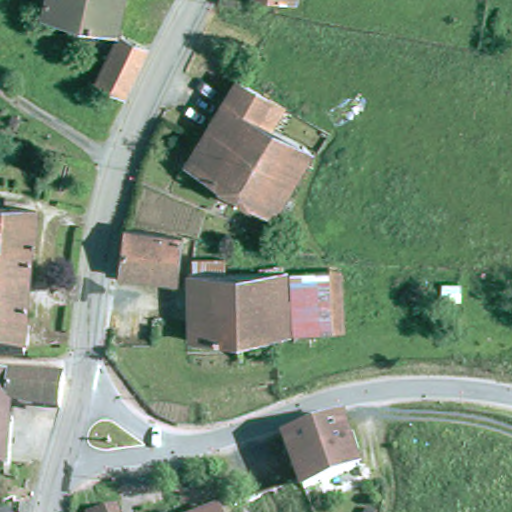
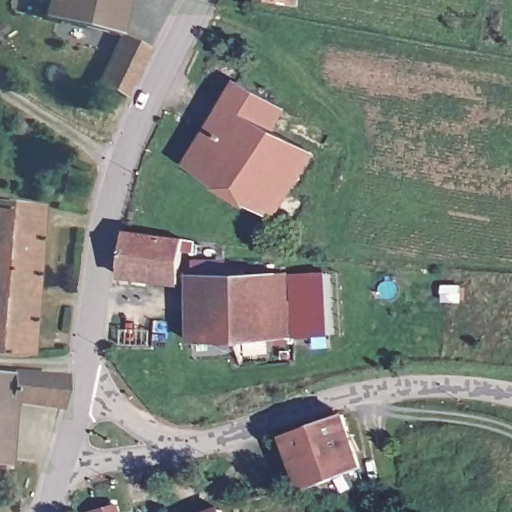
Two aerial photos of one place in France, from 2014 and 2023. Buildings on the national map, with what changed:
unchanged [(48,0),(122,0),(116,30),(45,12),(48,0)]
unchanged [(294,0),(294,2),(280,0),(294,0)]
unchanged [(98,79),(123,32),(146,44),(122,92),(98,79)]
unchanged [(181,161),(231,76),(265,97),(256,114),(254,117),(303,147),(264,211),(181,161)]
unchanged [(0,200),(35,204),(24,347),(0,346),(0,200)]
unchanged [(114,277),(121,229),(181,237),(174,284),(114,277)]
unchanged [(183,276),(188,276),(188,262),(218,262),(219,275),(279,274),(281,337),(186,342),(183,276)]
unchanged [(333,275),(336,332),(324,332),(291,333),(287,333),(284,275),(289,275),(319,275),(333,275)]
unchanged [(3,458),(3,461),(0,461),(0,371),(63,373),(54,404),(7,400),(3,458)]
unchanged [(340,412),(359,466),(305,488),(283,432),(340,412)]
unchanged [(116,512),(87,512),(85,505),(112,499),(116,512)]
unchanged [(228,500),(234,512),(198,512),(228,500)]

